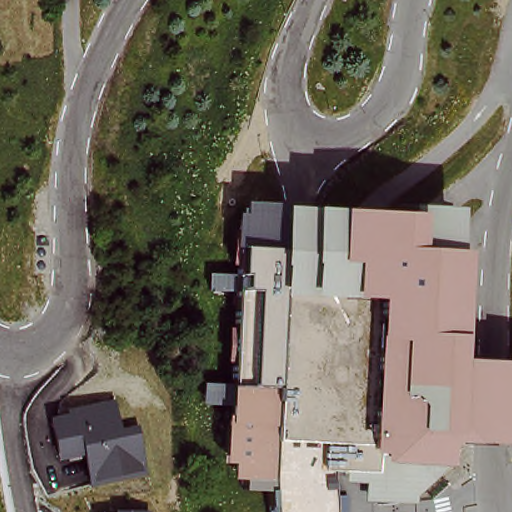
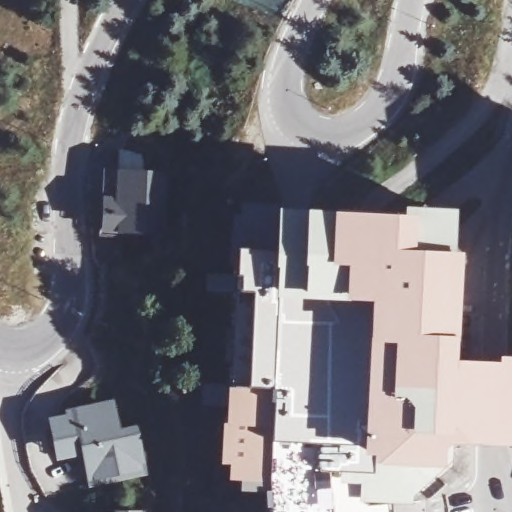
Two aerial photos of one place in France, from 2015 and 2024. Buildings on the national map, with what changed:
new [(101,174),(119,173),(165,175),(162,238),(99,236),(101,174)]
unchanged [(512,361),(512,440),(485,434),(480,479),(419,483),(415,503),(359,507),(354,483),(328,476),(327,512),(265,512),(263,482),(222,473),(230,277),(260,278),(274,210),(455,216),(451,356),(512,361)]
unchanged [(66,414),(65,410),(115,400),(119,429),(138,425),(148,473),(89,486),(82,455),(57,461),(47,417),(66,414)]

